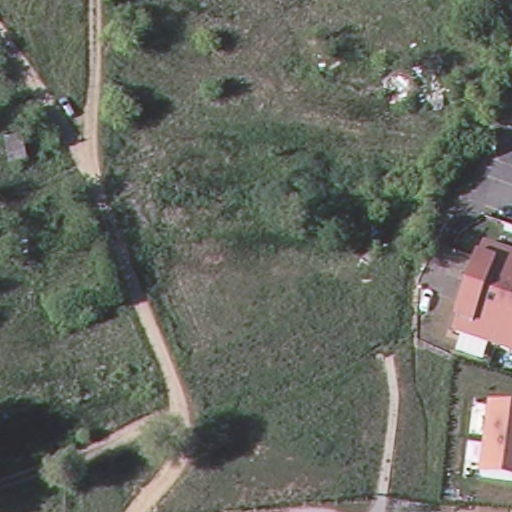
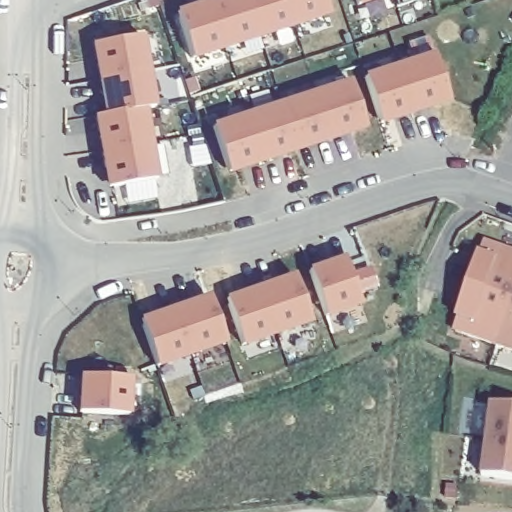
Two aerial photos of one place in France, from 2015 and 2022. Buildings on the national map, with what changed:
new [(219,0),(322,0),(327,15),(260,35),(192,55),(178,13),(219,0)]
new [(357,3),(355,0),(368,0),(357,3)]
new [(112,185),(109,163),(102,165),(100,147),(105,147),(101,115),(110,113),(108,92),(100,93),(97,65),(102,64),(99,44),(140,38),(151,108),(142,109),(154,180),(112,185)]
new [(427,101),(429,107),(400,116),(397,111),(377,117),(365,77),(433,56),(445,95),(427,101)]
new [(343,128),(345,134),(316,144),(314,138),(275,151),(277,157),(248,166),(246,160),(225,166),(214,127),(350,82),(362,122),(343,128)]
unchanged [(452,330),(483,238),(512,249),(512,349),(452,330)]
new [(325,319),(310,273),(345,260),(347,265),(360,306),(325,319)]
new [(277,335),(242,347),(228,306),(227,302),(261,290),(295,278),(297,283),(311,323),(277,335)]
new [(192,357),(157,369),(143,328),(141,323),(175,311),(210,299),(212,304),(226,345),(192,357)]
new [(128,418),(80,415),(79,415),(82,378),(87,378),(130,381),(128,418)]
unchanged [(480,477),(490,402),(512,407),(512,481),(480,477)]

